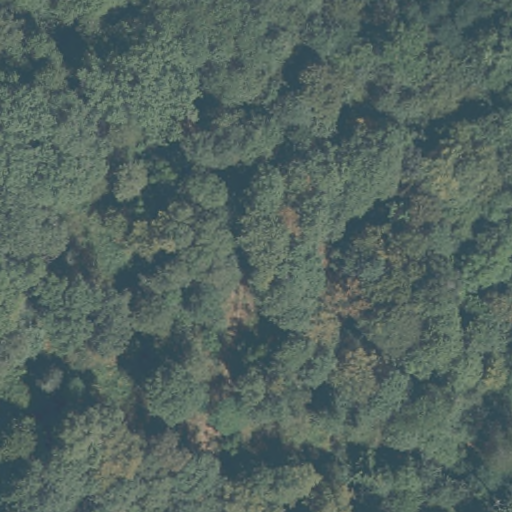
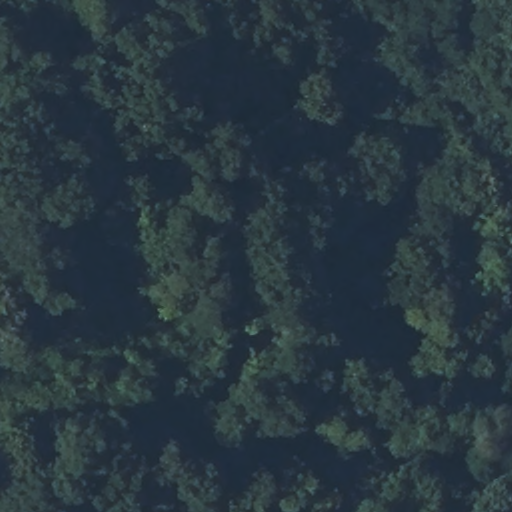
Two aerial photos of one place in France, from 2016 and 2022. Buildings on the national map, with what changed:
unchanged [(466,166),(457,171),(448,155),(457,150),(466,166)]
unchanged [(430,199),(428,211),(416,211),(417,205),(417,198),(430,199)]

